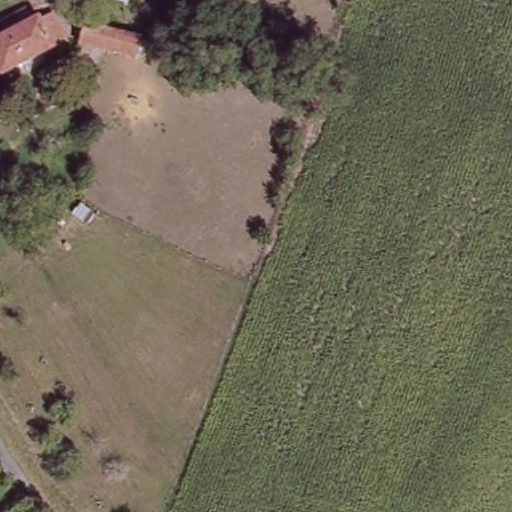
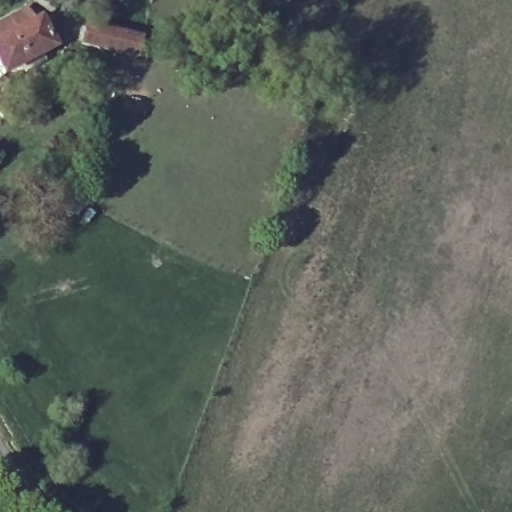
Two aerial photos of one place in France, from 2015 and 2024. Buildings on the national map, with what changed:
unchanged [(30,9),(36,23),(42,20),(53,47),(4,73),(0,66),(0,25),(30,9)]
unchanged [(137,52),(82,39),(86,19),(142,33),(137,52)]

